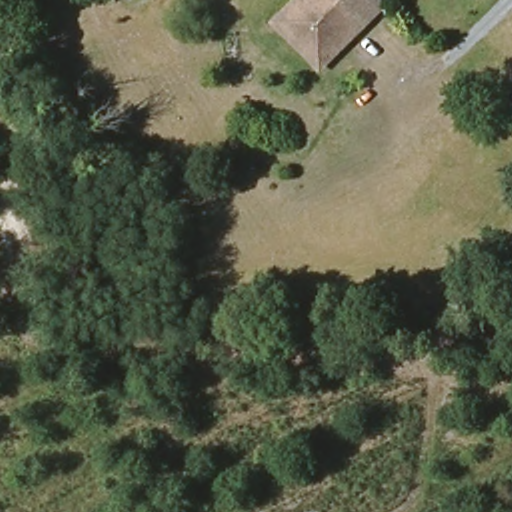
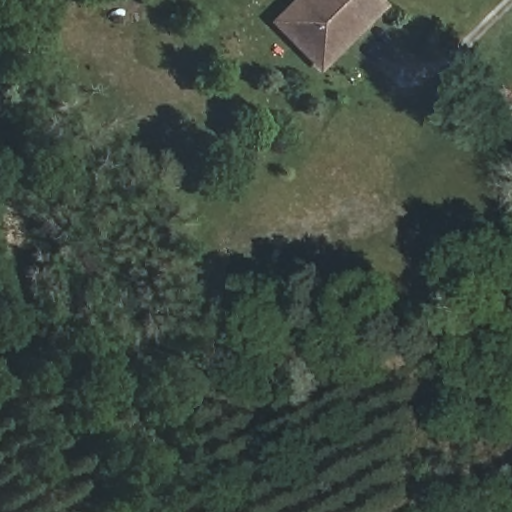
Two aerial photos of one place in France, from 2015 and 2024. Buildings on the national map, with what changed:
unchanged [(381,7),(322,67),(273,22),(295,0),(375,0),(381,7)]

